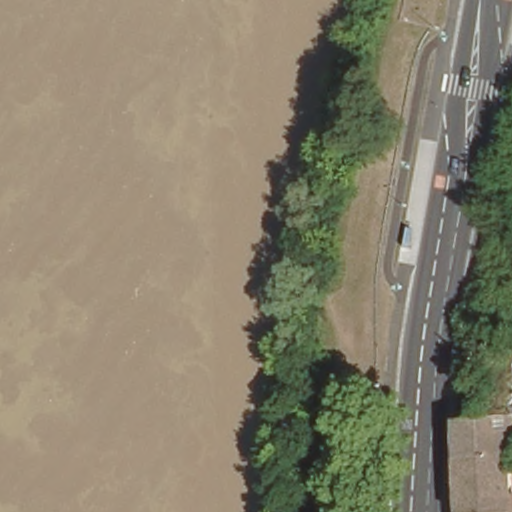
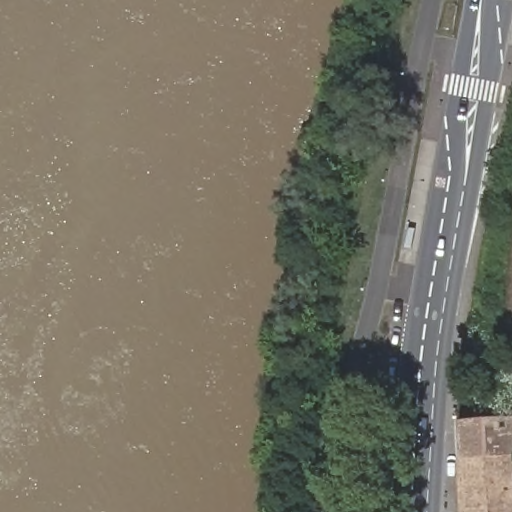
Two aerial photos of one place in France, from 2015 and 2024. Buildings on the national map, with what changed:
unchanged [(459,469),(464,420),(497,423),(492,465),(492,467),(459,469)]
unchanged [(507,512),(462,512),(459,469),(492,467),(504,467),(507,512)]

